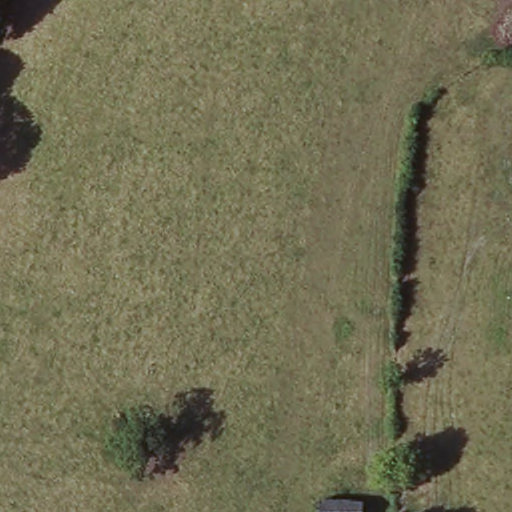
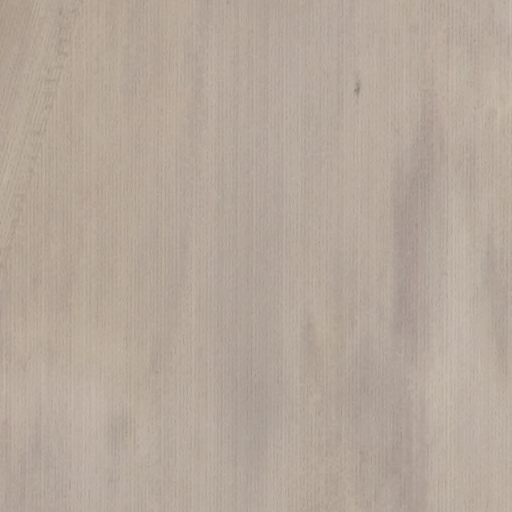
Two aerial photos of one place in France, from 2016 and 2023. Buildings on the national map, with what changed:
demolished [(362,512),(313,512),(313,496),(362,496),(362,512)]

